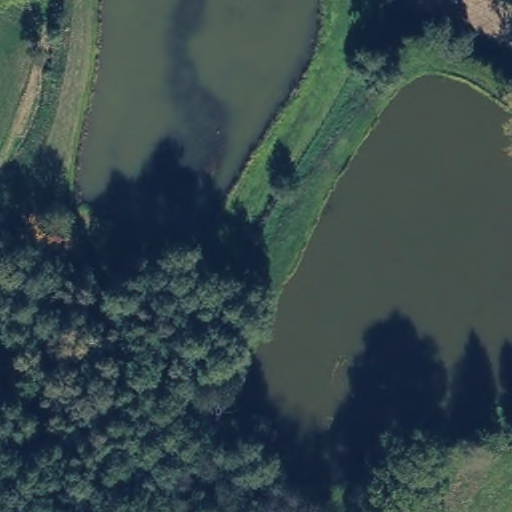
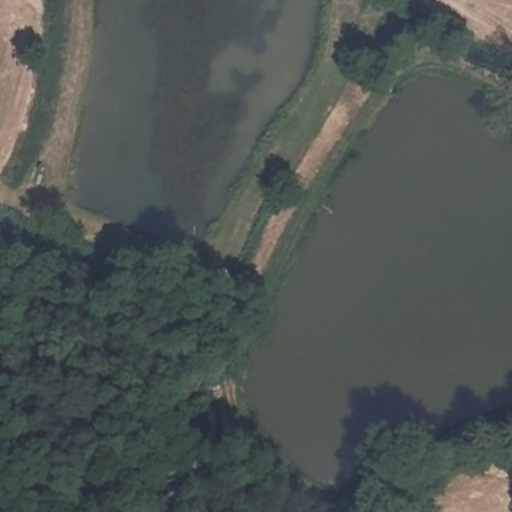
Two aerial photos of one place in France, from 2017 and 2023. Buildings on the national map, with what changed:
unchanged [(464,453),(442,458),(442,432),(461,430),(464,453)]

